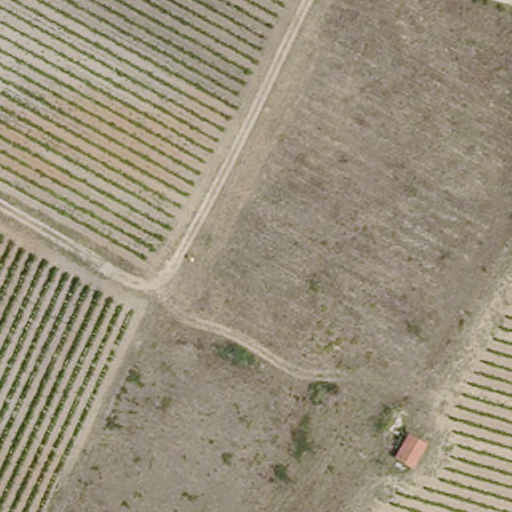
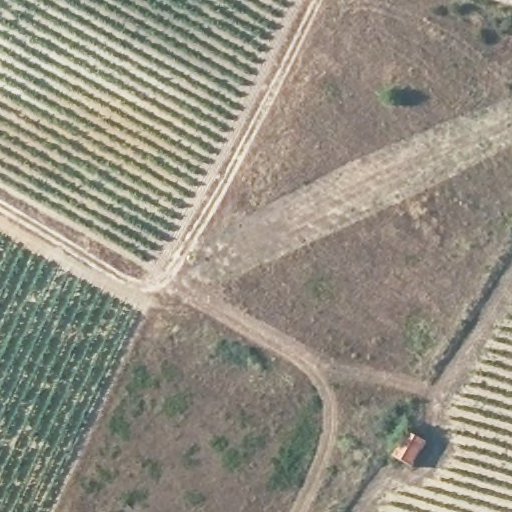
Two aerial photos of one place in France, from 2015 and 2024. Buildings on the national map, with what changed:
unchanged [(413,468),(394,458),(411,432),(428,442),(413,468)]

